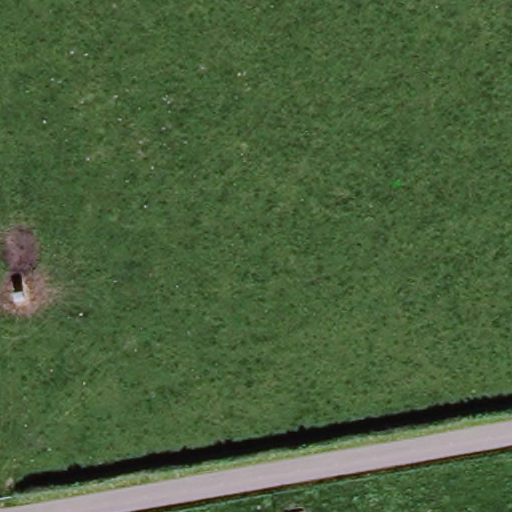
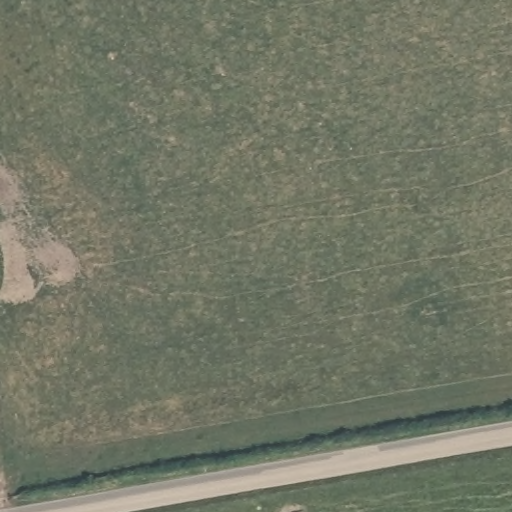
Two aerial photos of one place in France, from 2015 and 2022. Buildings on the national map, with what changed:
[]

